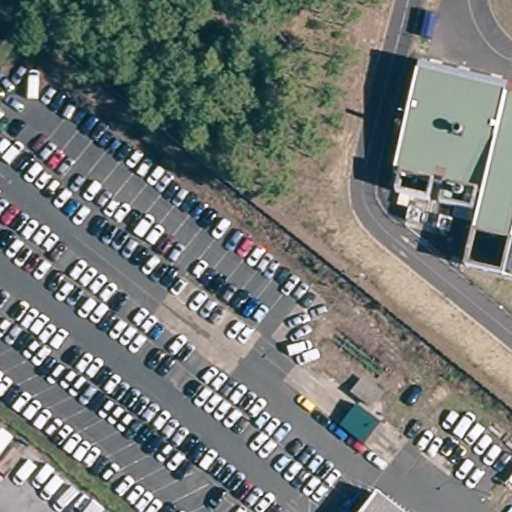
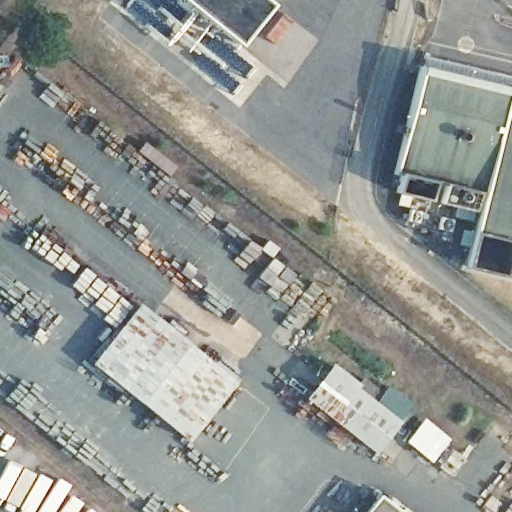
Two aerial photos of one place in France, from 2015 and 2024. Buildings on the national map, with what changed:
new [(277,4),(244,46),(189,0),(272,0),(277,4)]
unchanged [(508,278),(471,270),(487,204),(480,202),(477,216),(441,207),(445,194),(425,189),(422,203),(385,195),(389,177),(382,176),(411,64),(432,69),(512,88),(512,261),(508,278)]
demolished [(509,304),(511,295),(512,295),(512,305),(509,304)]
new [(189,440),(92,363),(140,302),(237,381),(189,440)]
new [(377,452),(306,398),(335,362),(362,384),(357,388),(401,421),(377,452)]
unchanged [(409,512),(372,512),(387,493),(409,512)]

